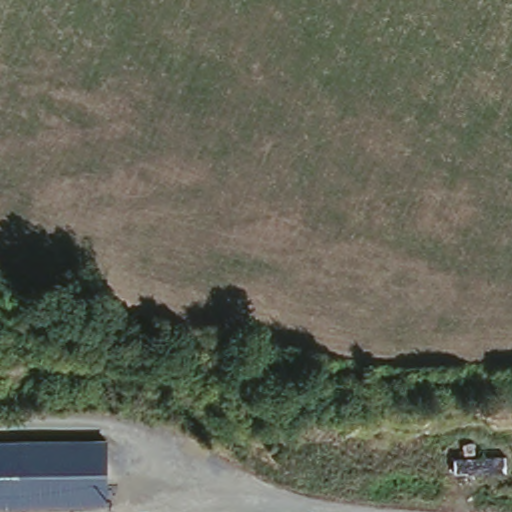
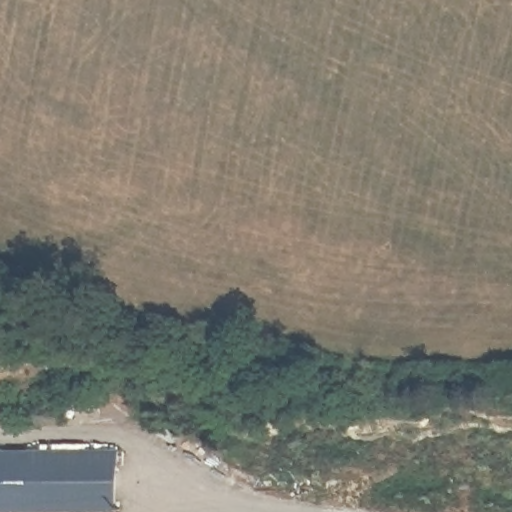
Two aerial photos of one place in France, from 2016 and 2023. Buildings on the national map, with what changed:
unchanged [(0,438),(105,447),(107,512),(0,512),(0,438)]

